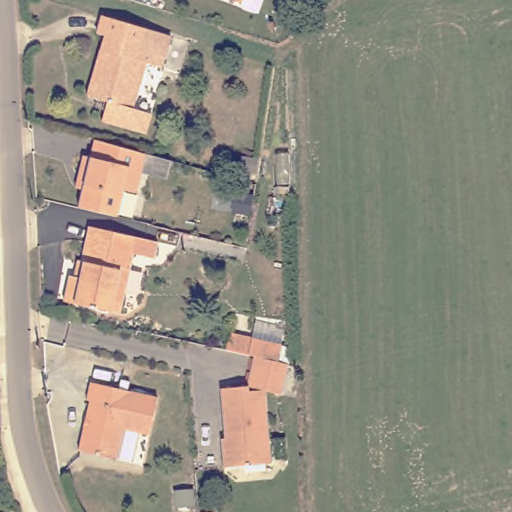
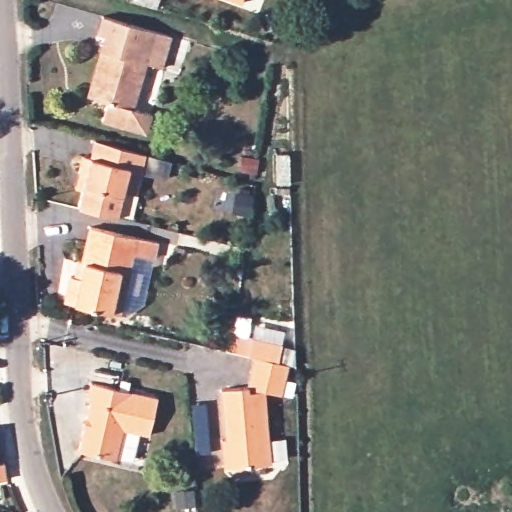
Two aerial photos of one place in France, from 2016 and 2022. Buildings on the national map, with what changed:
unchanged [(236,0),(240,0),(240,1),(236,0)]
unchanged [(170,37),(161,69),(145,65),(133,107),(156,114),(153,129),(152,130),(151,131),(150,132),(149,132),(147,133),(146,133),(146,132),(104,122),(109,104),(88,98),(105,37),(97,36),(102,18),(170,37)]
unchanged [(80,175),(85,159),(91,160),(96,142),(107,145),(147,155),(137,195),(125,191),(118,217),(79,209),(84,192),(76,190),(80,175)]
unchanged [(66,301),(69,290),(72,275),(79,277),(82,260),(86,262),(95,227),(163,244),(159,258),(136,252),(125,301),(121,315),(66,301)]
unchanged [(278,461),(231,469),(226,441),(230,440),(221,391),(249,385),(255,355),(250,353),(235,350),(226,348),(230,332),(253,337),(282,344),(290,345),(290,362),(282,393),(265,389),(278,461)]
unchanged [(90,400),(86,400),(90,382),(157,398),(149,435),(122,429),(115,461),(79,452),(90,400)]

